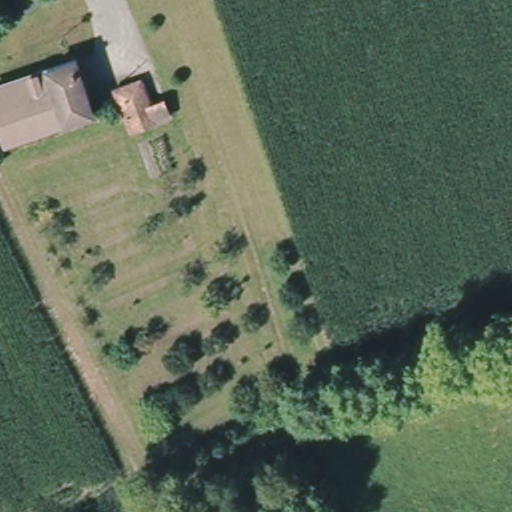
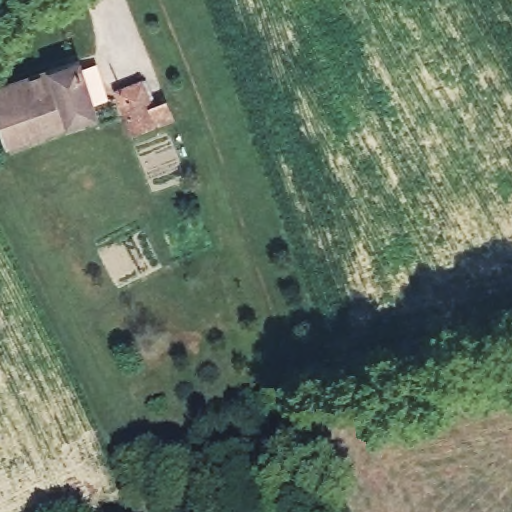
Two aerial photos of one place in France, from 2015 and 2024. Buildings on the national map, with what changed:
unchanged [(94,110),(10,136),(0,99),(0,86),(79,62),(94,110)]
unchanged [(139,87),(144,110),(154,107),(160,125),(134,132),(124,134),(115,103),(113,93),(139,87)]

